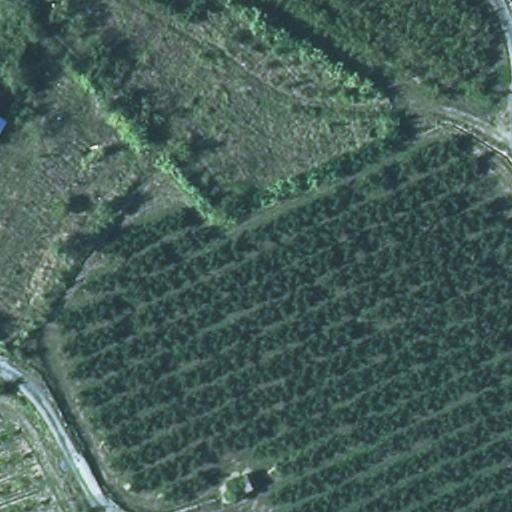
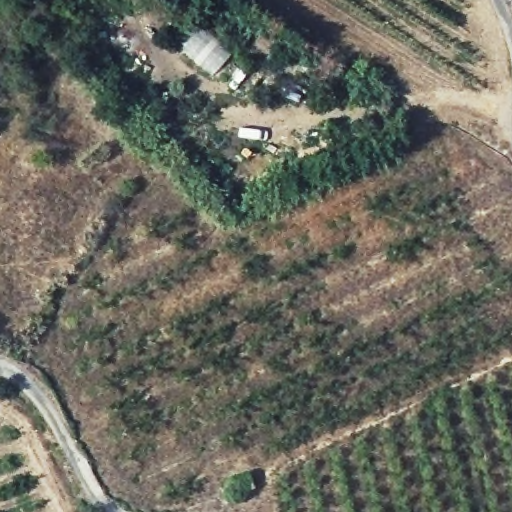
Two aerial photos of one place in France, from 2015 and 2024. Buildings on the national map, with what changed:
unchanged [(234,497),(225,481),(245,474),(252,489),(234,497)]

